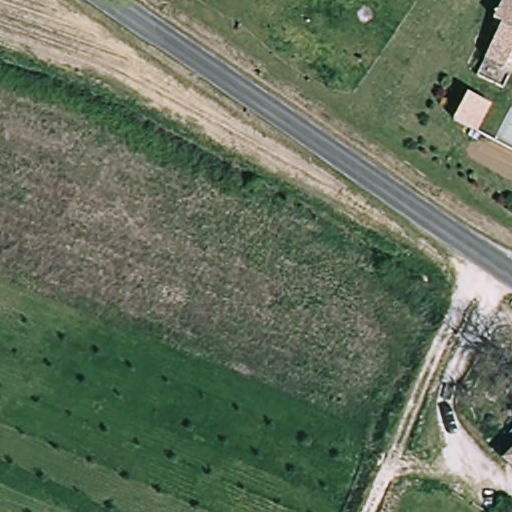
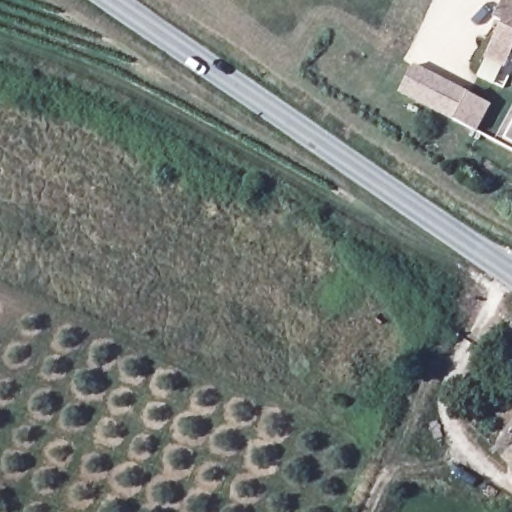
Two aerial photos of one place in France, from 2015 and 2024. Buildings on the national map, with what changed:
unchanged [(509,67),(489,58),(507,23),(498,19),(508,0),(512,0),(512,60),(509,67)]
new [(478,132),(454,121),(402,92),(414,64),(469,93),(492,105),(478,132)]
unchanged [(507,390),(512,384),(512,395),(507,390)]
unchanged [(512,454),(512,466),(506,460),(512,454)]

